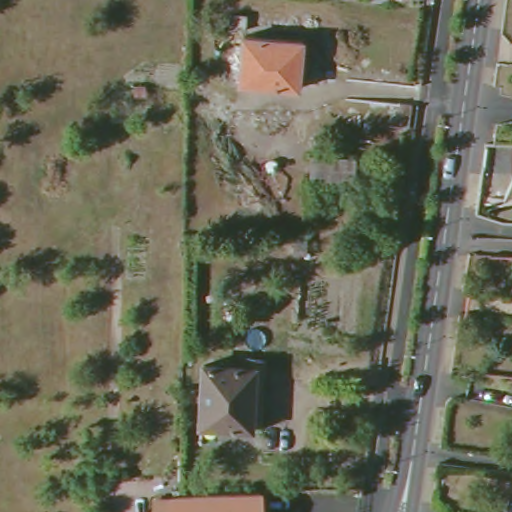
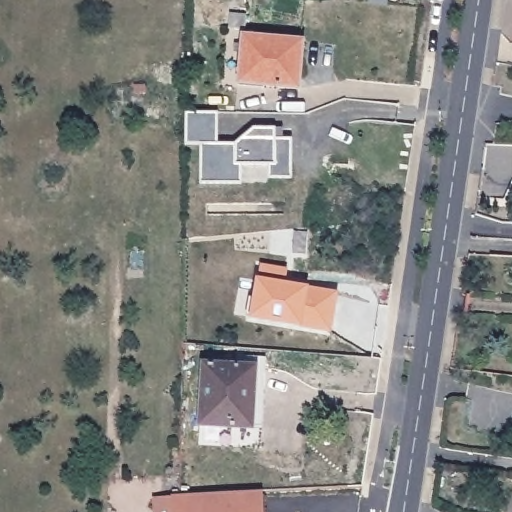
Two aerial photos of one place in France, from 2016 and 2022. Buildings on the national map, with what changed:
unchanged [(247,16),(245,29),(230,28),(231,14),(247,16)]
unchanged [(302,41),(298,87),(239,82),(243,36),(245,36),(302,41)]
new [(185,111),(217,111),(217,143),(235,143),(253,127),(275,127),(275,138),(292,138),(292,177),(268,177),(268,164),(242,164),(241,183),(200,183),(201,144),(185,144),(185,111)]
demolished [(311,179),(310,174),(311,158),(356,159),(356,181),(312,179),(311,179)]
unchanged [(295,233),(304,233),(304,253),(294,253),(295,233)]
new [(302,329),(249,318),(257,279),(261,265),(287,268),(286,282),(309,286),(337,292),(331,334),(302,329)]
unchanged [(202,425),(205,365),(254,367),(250,427),(202,425)]
unchanged [(260,493),(260,512),(174,512),(173,497),(179,496),(260,493)]

